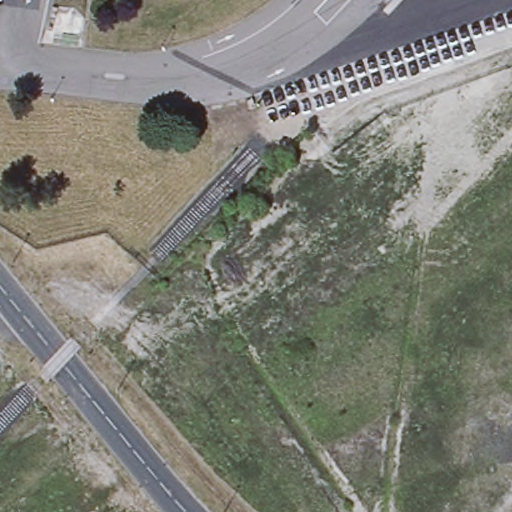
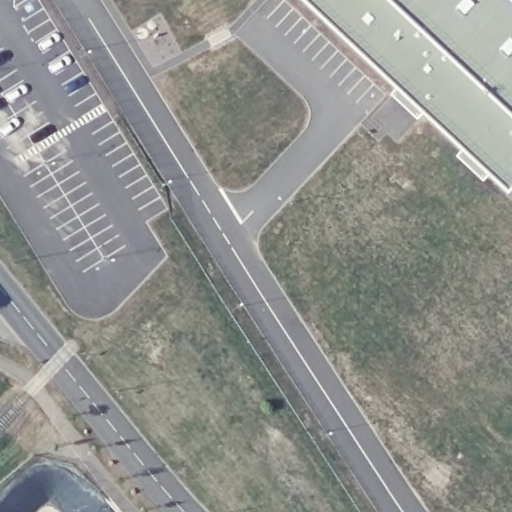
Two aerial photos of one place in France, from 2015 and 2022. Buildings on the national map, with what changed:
new [(306,0),(512,0),(512,195),(306,0)]

